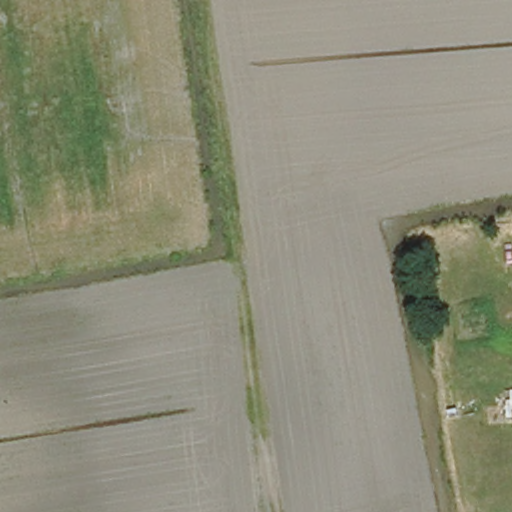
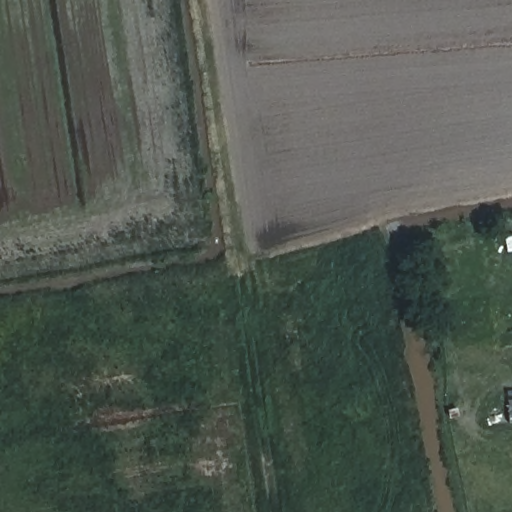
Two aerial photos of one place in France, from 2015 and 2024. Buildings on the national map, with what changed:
unchanged [(491,406),(512,404),(512,426),(492,427),(491,406)]

